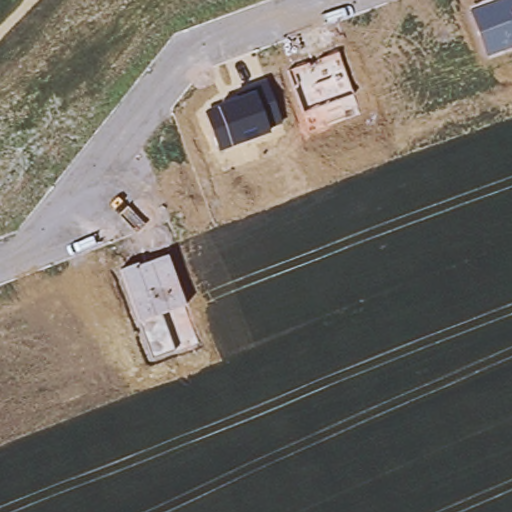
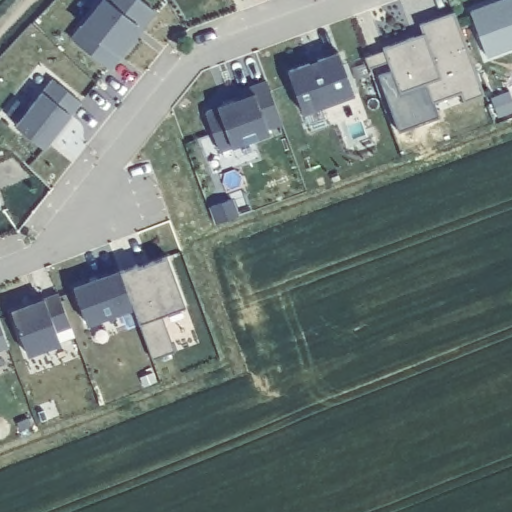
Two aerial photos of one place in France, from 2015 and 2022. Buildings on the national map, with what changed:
new [(156,12),(110,70),(70,38),(99,0),(141,0),(156,12)]
unchanged [(495,0),(512,0),(512,48),(487,57),(470,8),(495,0)]
new [(483,94),(463,101),(460,94),(431,103),(425,84),(399,93),(387,62),(370,67),(366,56),(424,35),(420,23),(455,12),(483,94)]
unchanged [(338,53),(353,94),(304,112),(289,71),(338,53)]
new [(81,102),(45,149),(15,125),(51,79),(81,102)]
unchanged [(246,95),(243,87),(268,79),(283,124),(270,128),(271,132),(220,152),(205,111),(246,95)]
unchanged [(165,256),(185,307),(160,315),(173,349),(153,356),(140,320),(121,272),(165,256)]
new [(135,308),(87,326),(73,289),(121,272),(135,308)]
new [(44,298),(58,293),(75,338),(60,343),(60,345),(28,358),(11,310),(44,298)]
new [(0,351),(0,323),(9,348),(0,351)]

